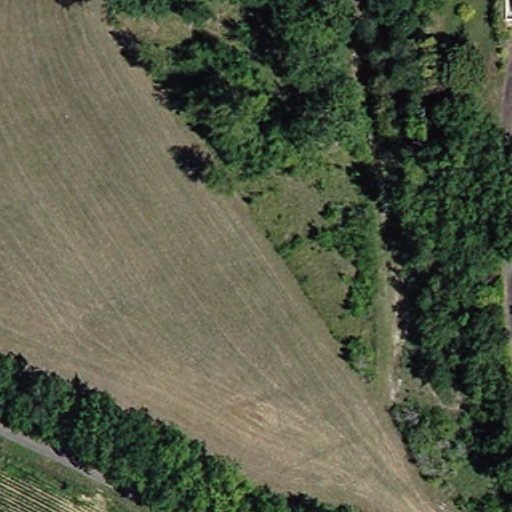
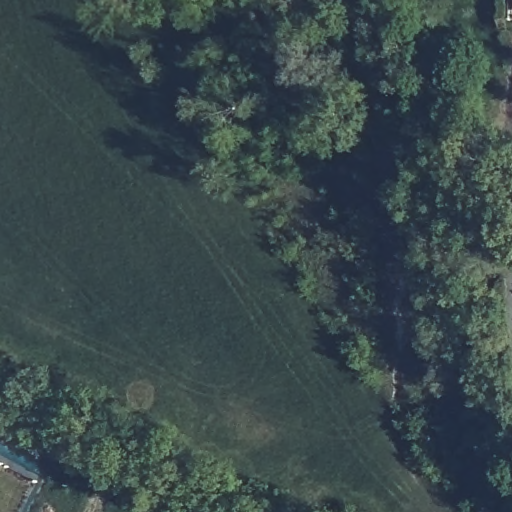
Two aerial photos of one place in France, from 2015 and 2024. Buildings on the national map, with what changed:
unchanged [(302,46),(280,54),(274,34),(297,27),(302,46)]

